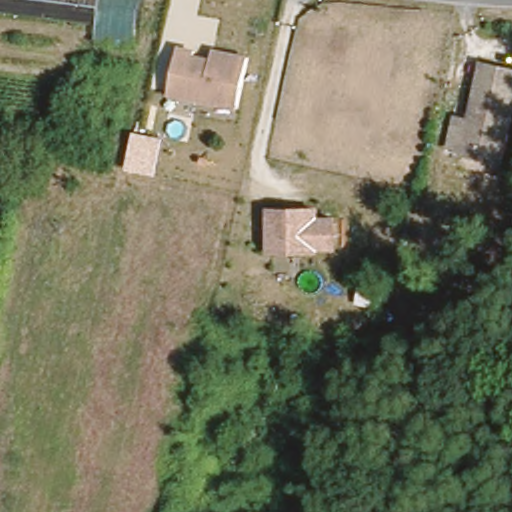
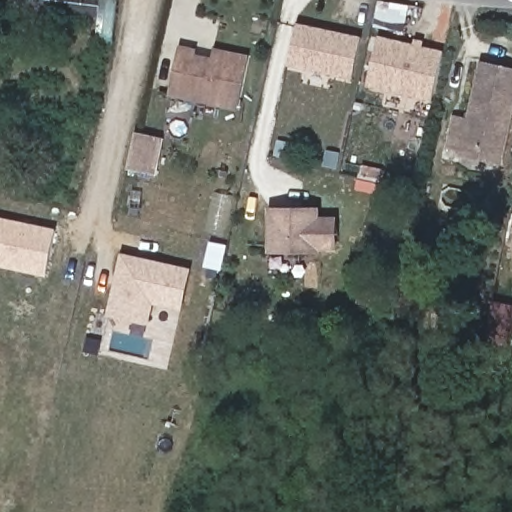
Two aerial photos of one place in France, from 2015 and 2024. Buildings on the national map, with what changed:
unchanged [(98,0),(94,20),(0,7),(0,0),(98,0)]
unchanged [(93,36),(94,20),(98,0),(141,0),(135,42),(93,36)]
new [(360,35),(352,75),(286,65),(295,23),(360,35)]
new [(443,52),(431,102),(365,87),(376,36),(443,52)]
unchanged [(176,43),(195,47),(195,52),(209,56),(212,45),(249,54),(237,109),(166,95),(176,43)]
unchanged [(453,114),(468,116),(480,60),(512,67),(512,110),(500,163),(445,151),(453,114)]
unchanged [(157,175),(126,170),(135,131),(165,137),(157,175)]
unchanged [(265,205),(318,205),(320,214),(337,214),(337,250),(266,252),(265,205)]
new [(0,267),(0,217),(55,229),(46,276),(0,267)]
new [(191,267),(182,310),(155,305),(150,326),(106,316),(121,252),(191,267)]

